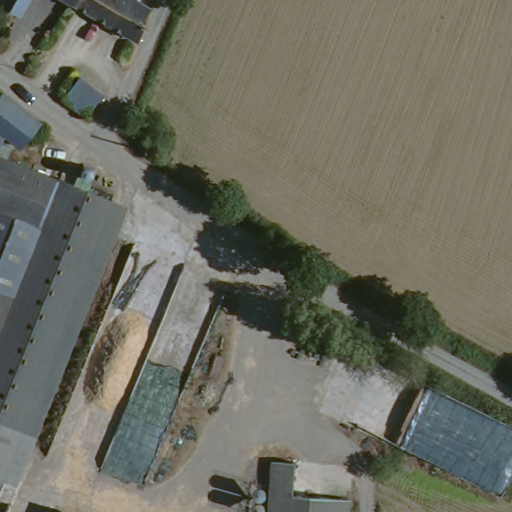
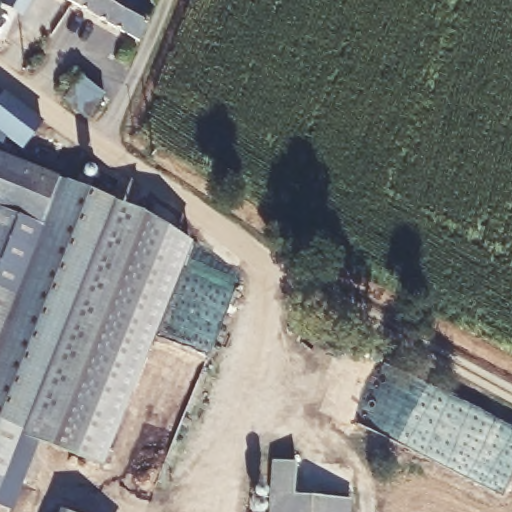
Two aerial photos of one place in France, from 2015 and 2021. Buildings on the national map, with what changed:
unchanged [(0,10),(0,6),(3,0),(30,0),(17,20),(0,10)]
unchanged [(57,0),(80,0),(74,10),(57,0)]
unchanged [(154,15),(140,47),(123,37),(74,10),(80,0),(140,0),(136,7),(154,15)]
unchanged [(75,81),(99,99),(82,122),(75,115),(58,103),(75,81)]
unchanged [(14,152),(2,145),(0,147),(0,96),(36,127),(14,152)]
unchanged [(15,495),(0,489),(0,291),(12,296),(37,232),(0,218),(0,159),(123,209),(15,495)]
new [(190,243),(100,467),(35,440),(123,209),(190,243)]
unchanged [(347,512),(268,512),(271,477),(272,471),(294,474),(292,505),(335,511),(347,512)]
new [(58,510),(65,512),(57,512),(58,510)]

